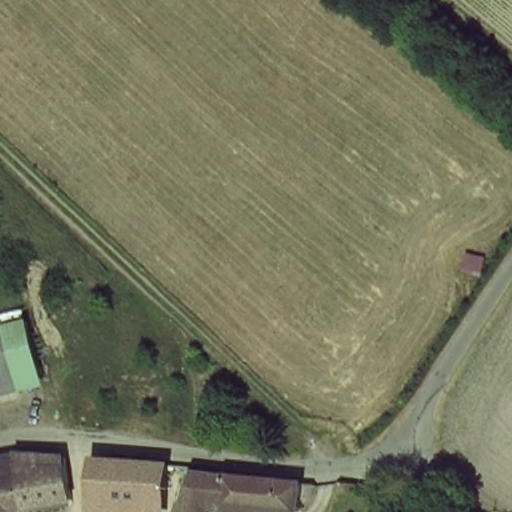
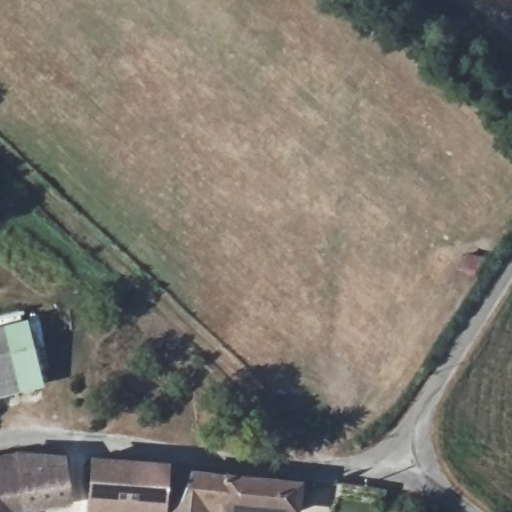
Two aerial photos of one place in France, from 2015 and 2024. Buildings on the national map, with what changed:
unchanged [(0,332),(30,323),(47,375),(0,387),(0,332)]
unchanged [(58,450),(62,484),(30,485),(28,468),(0,473),(0,454),(12,452),(58,450)]
unchanged [(30,485),(62,484),(65,512),(0,512),(0,473),(28,468),(30,485)]
unchanged [(114,512),(96,512),(98,469),(119,470),(169,474),(167,510),(114,512)]
unchanged [(187,475),(197,476),(242,480),(295,484),(307,485),(302,512),(247,512),(217,508),(216,512),(177,512),(180,501),(187,475)]

